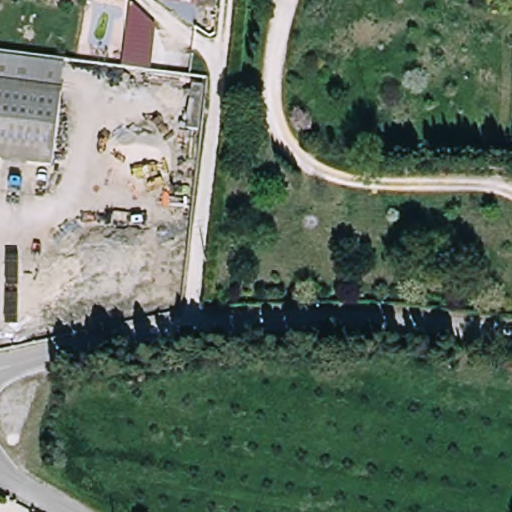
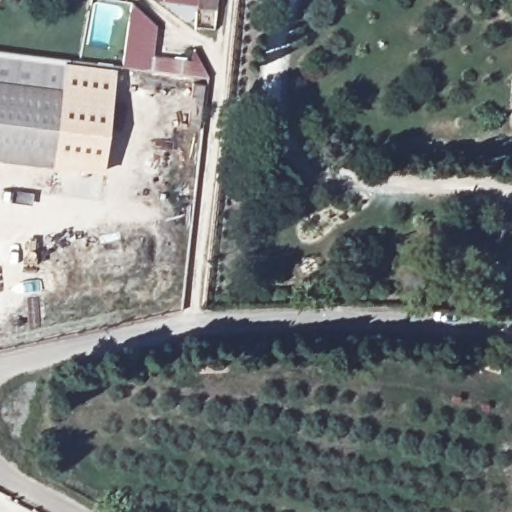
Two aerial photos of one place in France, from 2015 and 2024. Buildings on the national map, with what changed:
unchanged [(188,0),(220,0),(220,3),(188,0)]
new [(132,8),(155,26),(151,70),(123,67),(132,8)]
unchanged [(63,83),(0,75),(0,49),(66,57),(63,83)]
new [(101,169),(52,166),(53,159),(65,64),(116,70),(101,169)]
unchanged [(53,159),(0,152),(0,75),(63,83),(53,159)]

